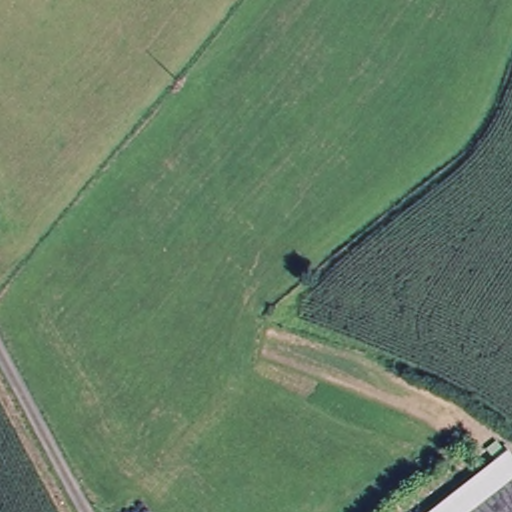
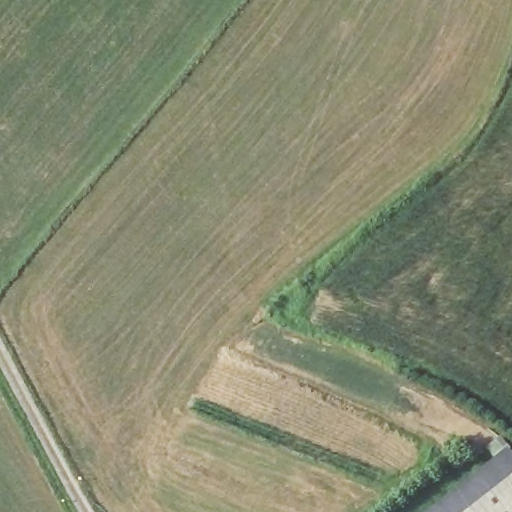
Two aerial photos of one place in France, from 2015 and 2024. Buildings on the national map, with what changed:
unchanged [(512,451),(512,512),(421,512),(507,446),(512,451)]

